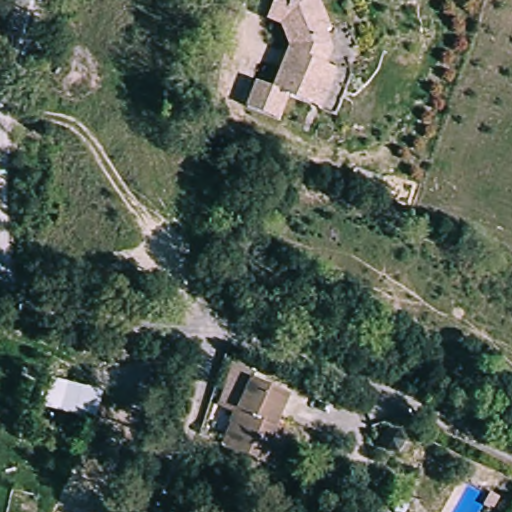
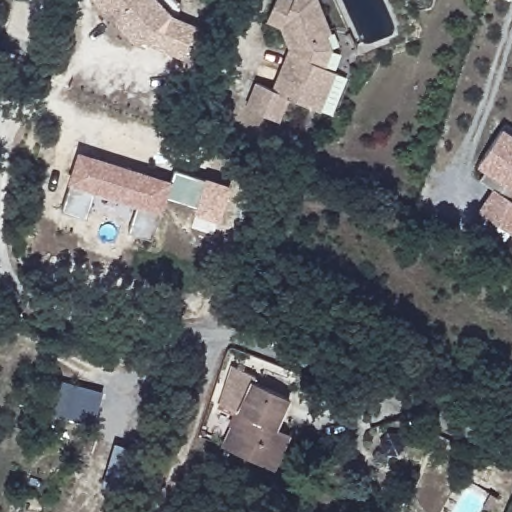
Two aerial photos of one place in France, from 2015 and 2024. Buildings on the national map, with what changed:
new [(93,0),(159,0),(170,12),(180,17),(198,25),(182,59),(165,51),(142,42),(138,47),(93,0)]
unchanged [(290,103),(278,126),(246,110),(260,86),(276,94),(296,55),(287,30),(272,23),(284,0),(291,0),(299,4),(301,0),(322,0),(335,39),(330,40),(336,57),(326,74),(337,79),(327,100),(320,117),(310,113),(290,103)]
new [(512,215),(496,238),(465,217),(482,194),(469,185),(475,176),(475,175),(465,169),(490,135),(512,151),(512,205),(507,211),(512,215)]
new [(152,239),(127,231),(135,206),(93,192),(85,218),(59,209),(78,149),(171,180),(152,239)]
unchanged [(276,467),(262,461),(223,444),(238,409),(220,401),(236,364),(257,373),(253,380),(290,397),(276,430),(290,436),(276,467)]
unchanged [(95,418),(58,411),(65,382),(101,389),(95,418)]

